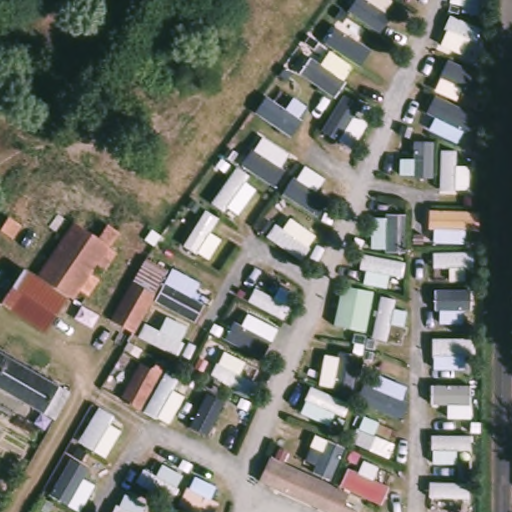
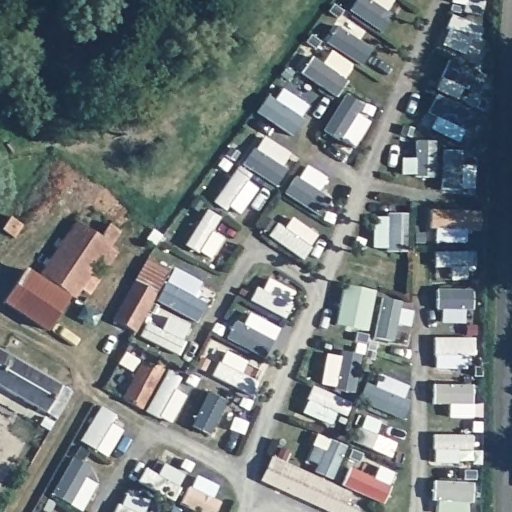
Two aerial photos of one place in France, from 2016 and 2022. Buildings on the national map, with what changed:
unchanged [(7,217),(20,225),(12,240),(0,232),(0,228),(7,217)]
unchanged [(101,239),(110,224),(122,232),(113,246),(123,252),(109,272),(101,265),(95,275),(104,280),(92,297),(84,291),(78,301),(42,275),(78,222),(101,239)]
unchanged [(111,320),(146,259),(150,261),(167,271),(132,333),(111,320)]
unchanged [(69,299),(49,331),(5,301),(27,270),(69,299)]
unchanged [(72,398),(58,424),(0,390),(0,355),(72,398)]
unchanged [(151,368),(153,363),(162,367),(139,408),(120,398),(140,362),(151,368)]
unchanged [(344,511),(346,512),(317,512),(261,487),(273,461),(351,496),(344,511)]

